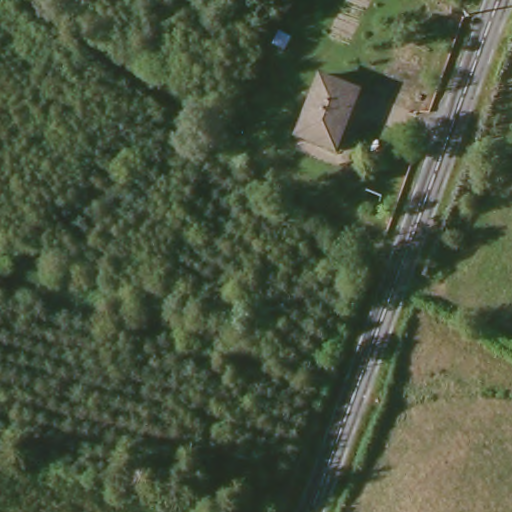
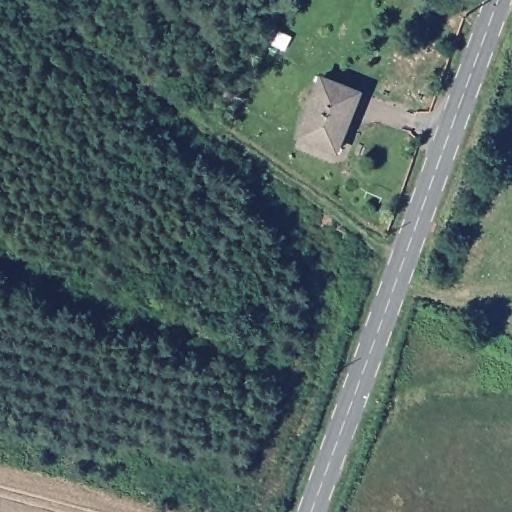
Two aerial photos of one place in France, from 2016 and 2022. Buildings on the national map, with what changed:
unchanged [(321,74),(366,90),(344,155),(301,137),(321,74)]

